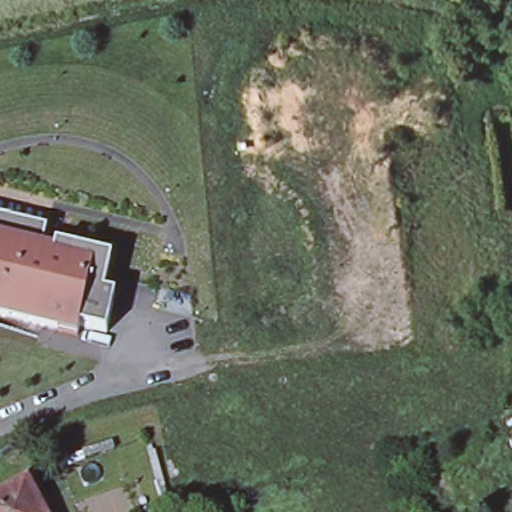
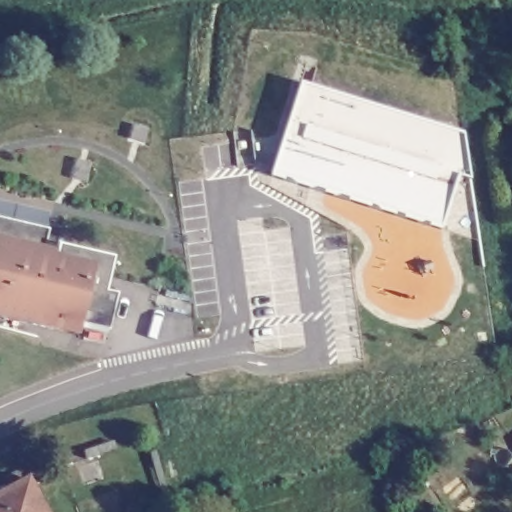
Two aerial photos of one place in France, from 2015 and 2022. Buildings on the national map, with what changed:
new [(301,85),(460,134),(449,173),(289,122),(301,85)]
new [(273,172),(286,131),(452,185),(438,225),(273,172)]
unchanged [(51,228),(48,241),(116,256),(109,290),(120,293),(111,329),(85,323),(82,332),(0,313),(0,217),(51,228)]
unchanged [(45,512),(0,512),(0,485),(2,484),(5,489),(27,478),(45,512)]

